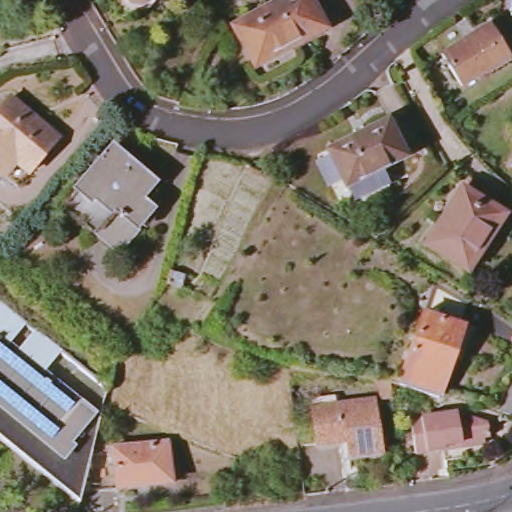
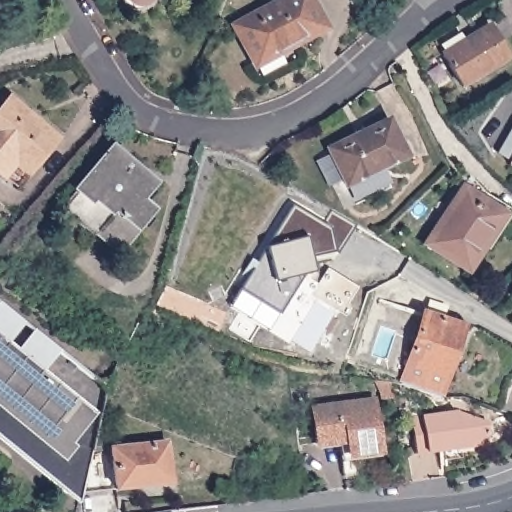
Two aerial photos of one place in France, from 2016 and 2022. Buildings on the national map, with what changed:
unchanged [(155,4),(153,6),(152,10),(148,10),(145,10),(142,10),(139,8),(135,5),(132,2),(131,0),(156,0),(155,4)]
unchanged [(323,30),(290,47),(286,40),(250,61),(231,26),(280,0),(309,0),(323,30)]
unchanged [(507,56),(462,85),(440,54),(489,24),(507,56)]
unchanged [(28,169),(3,147),(0,151),(0,108),(12,94),(58,134),(28,169)]
unchanged [(347,187),(329,150),(390,120),(407,157),(347,187)]
unchanged [(115,254),(70,217),(86,197),(76,189),(103,154),(132,179),(130,182),(141,191),(133,203),(145,215),(115,254)]
unchanged [(483,241),(486,244),(470,268),(428,242),(460,193),(477,204),(482,197),(501,211),(483,241)]
new [(335,251),(311,257),(315,272),(306,274),(280,315),(240,290),(293,205),(323,225),(332,211),(355,225),(335,251)]
unchanged [(167,281),(170,270),(182,272),(179,285),(167,281)]
unchanged [(104,401),(94,447),(84,492),(82,501),(0,433),(0,297),(108,385),(104,401)]
unchanged [(403,382),(425,311),(465,325),(445,386),(442,396),(403,382)]
unchanged [(495,407),(495,404),(504,377),(512,375),(512,412),(508,413),(495,407)]
unchanged [(377,397),(383,447),(350,451),(350,441),(320,443),(315,403),(377,397)]
unchanged [(419,452),(413,416),(459,410),(490,422),(492,434),(486,435),(487,442),(465,445),(460,441),(447,443),(447,447),(419,452)]
unchanged [(117,488),(84,492),(94,447),(114,446),(171,442),(175,482),(117,488)]

